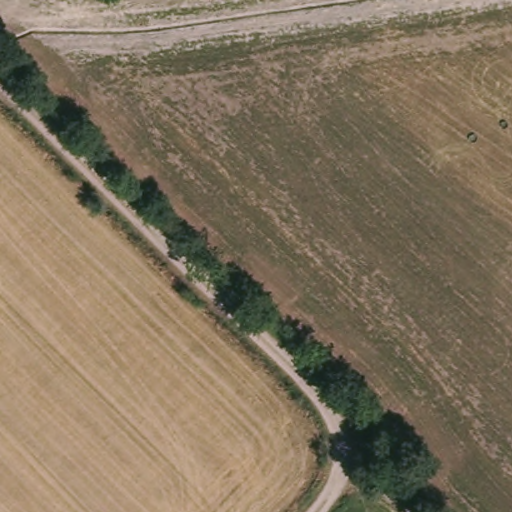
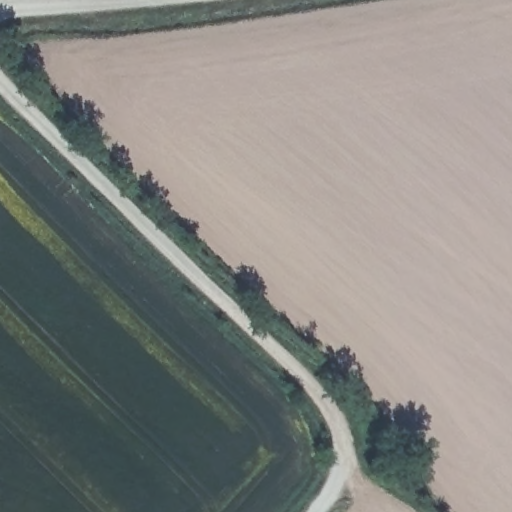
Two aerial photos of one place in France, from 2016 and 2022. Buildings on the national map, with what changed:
[]

